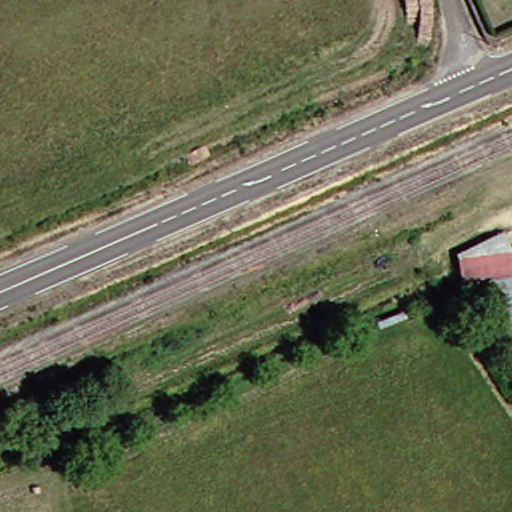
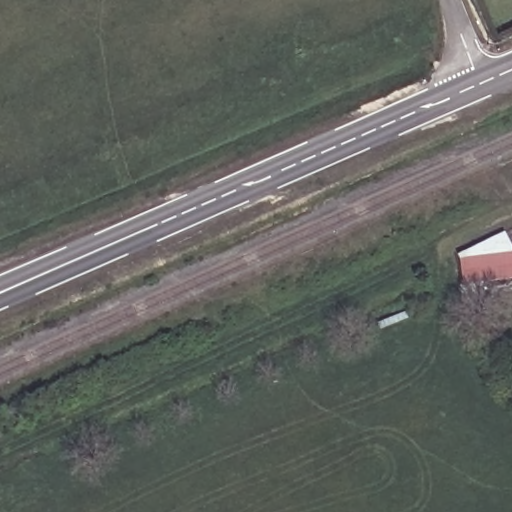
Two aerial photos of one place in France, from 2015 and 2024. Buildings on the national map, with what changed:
unchanged [(463,284),(467,284),(464,259),(512,254),(512,326),(507,328),(502,308),(465,313),(463,284)]

